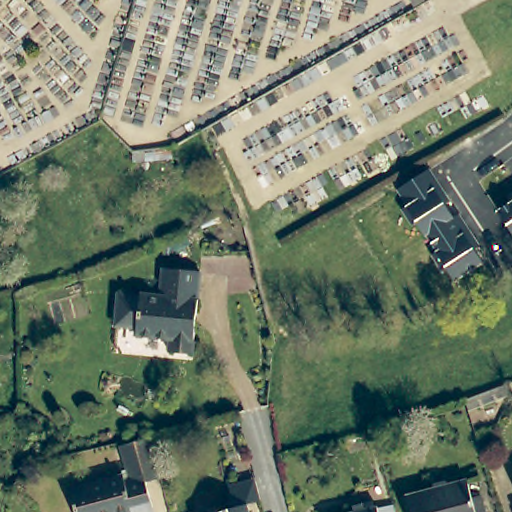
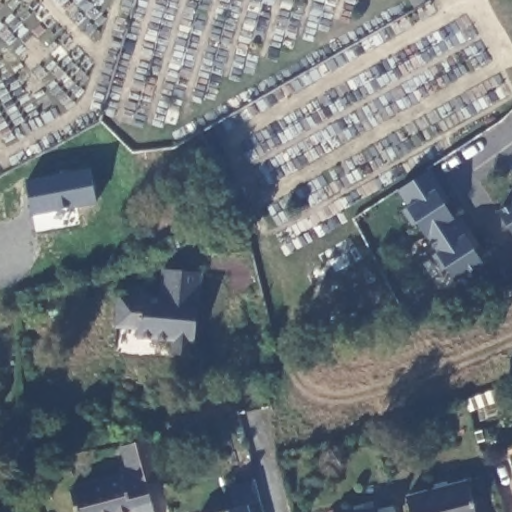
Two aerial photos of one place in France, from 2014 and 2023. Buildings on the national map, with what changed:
new [(90,167),(97,200),(34,214),(26,182),(90,167)]
unchanged [(456,283),(448,272),(445,273),(433,255),(436,252),(419,227),(413,230),(402,210),(408,206),(398,189),(432,169),(453,202),(449,205),(457,219),(462,216),(482,248),(477,251),(486,266),(456,283)]
unchanged [(496,212),(512,201),(512,235),(496,212)]
unchanged [(140,300),(140,295),(159,295),(158,267),(198,267),(201,351),(178,351),(178,339),(141,340),(141,331),(119,331),(120,300),(140,300)]
unchanged [(146,480),(155,512),(77,512),(71,489),(123,474),(125,481),(133,478),(124,446),(151,438),(161,476),(146,480)]
unchanged [(468,480),(476,512),(411,512),(407,497),(468,480)]
unchanged [(242,510),(243,512),(226,512),(235,510),(230,490),(251,483),(256,506),(242,510)]
unchanged [(357,512),(379,507),(380,512),(357,512)]

